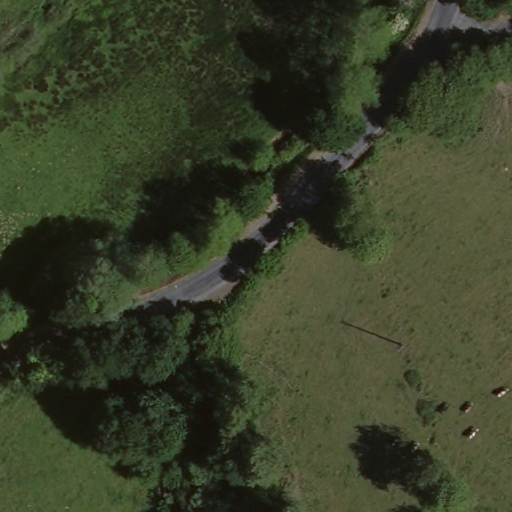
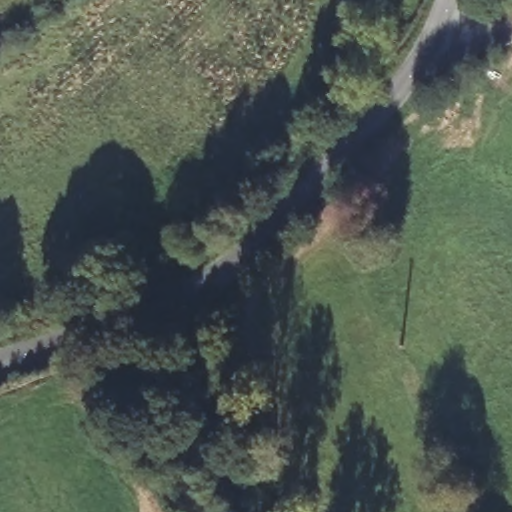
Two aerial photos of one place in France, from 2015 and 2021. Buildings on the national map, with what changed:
[]

